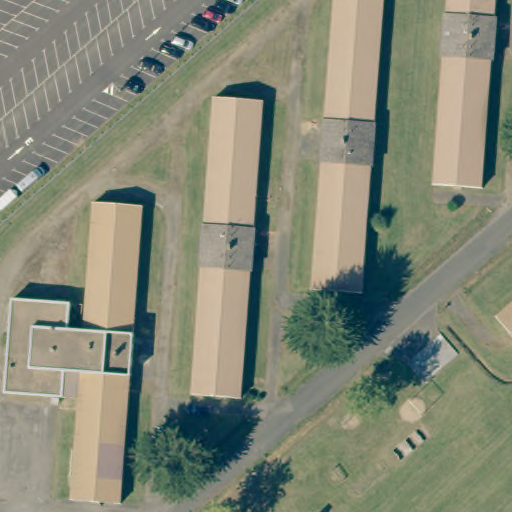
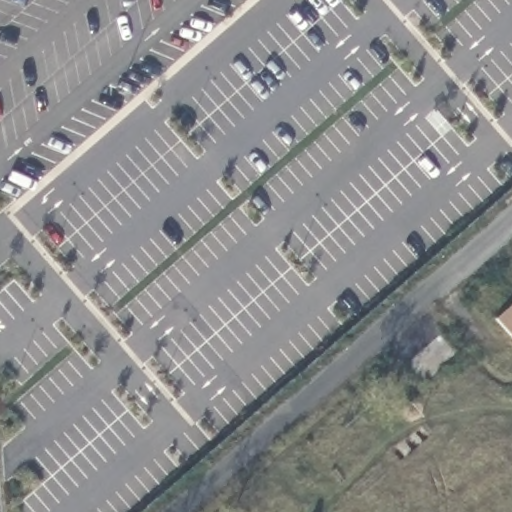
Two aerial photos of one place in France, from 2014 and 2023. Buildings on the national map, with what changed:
demolished [(311,295),(334,0),(385,0),(362,299),(311,295)]
demolished [(433,187),(446,0),(497,0),(483,191),(433,187)]
demolished [(264,106),(242,402),(192,398),(214,102),(264,106)]
demolished [(74,373),(71,400),(0,395),(6,296),(65,300),(63,326),(79,327),(87,200),(138,203),(118,500),(68,496),(76,373),(74,373)]
unchanged [(512,300),(512,333),(496,315),(512,300)]

